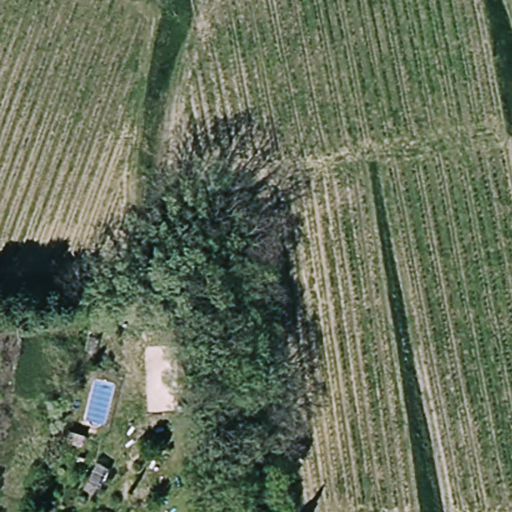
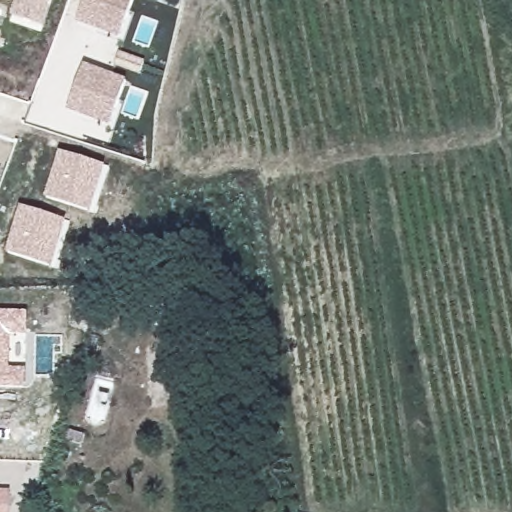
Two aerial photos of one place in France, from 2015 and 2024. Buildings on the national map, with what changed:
new [(17,0),(15,0),(51,0),(43,25),(12,15),(17,0)]
new [(86,0),(135,0),(121,38),(77,22),(86,0)]
new [(67,109),(85,64),(128,80),(110,125),(67,109)]
new [(90,211),(45,195),(60,150),(106,166),(90,211)]
new [(52,265),(7,250),(21,205),(66,220),(52,265)]
new [(10,335),(9,369),(26,369),(25,388),(0,388),(0,311),(28,311),(27,335),(10,335)]
new [(7,497),(10,497),(10,512),(0,512),(0,492),(7,492),(7,497)]

